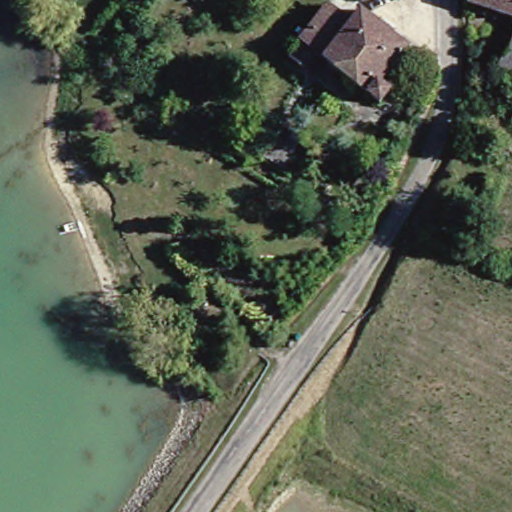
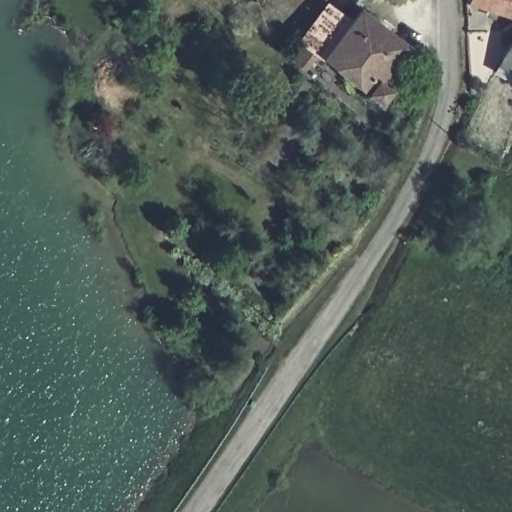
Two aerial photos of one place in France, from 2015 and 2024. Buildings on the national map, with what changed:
unchanged [(475,0),(512,0),(512,16),(474,4),(475,0)]
unchanged [(332,6),(354,22),(362,15),(367,10),(411,49),(386,80),(398,92),(385,109),(318,50),(305,64),(298,59),(309,43),(307,41),(332,6)]
unchanged [(512,51),(512,79),(499,75),(512,51)]
unchanged [(485,102),(485,92),(500,97),(494,106),(485,102)]

